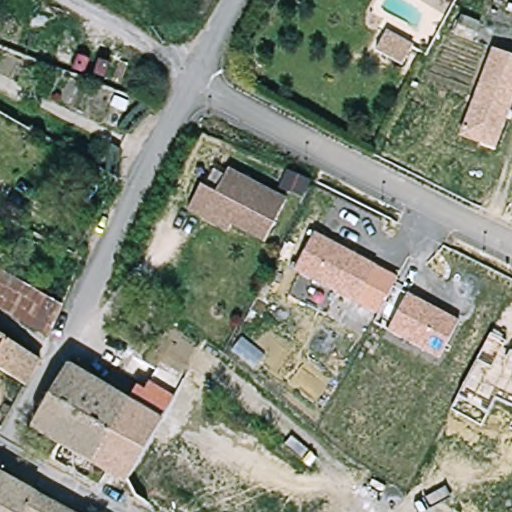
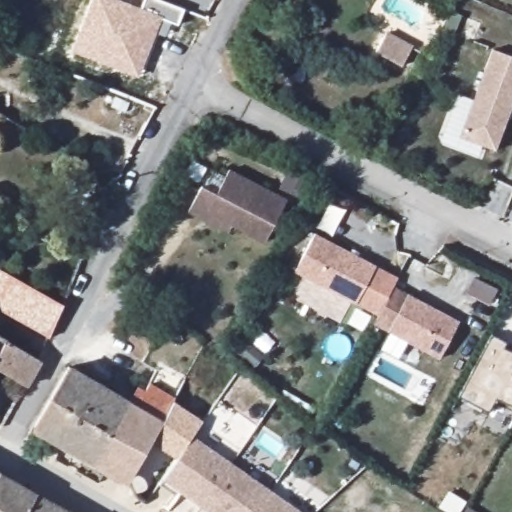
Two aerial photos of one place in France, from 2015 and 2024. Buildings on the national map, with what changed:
new [(70,50),(91,0),(120,0),(140,8),(143,0),(165,0),(183,7),(177,23),(162,17),(138,77),(70,50)]
unchanged [(411,46),(398,68),(373,55),(386,34),(411,46)]
unchanged [(512,102),(494,150),(460,136),(492,51),(512,58),(512,102)]
unchanged [(206,220),(191,212),(203,187),(218,195),(231,171),(290,201),(267,243),(235,227),(231,233),(206,220)]
unchanged [(395,278),(375,313),(295,271),(315,235),(395,278)]
unchanged [(48,336),(0,307),(0,272),(60,308),(48,336)]
unchanged [(457,322),(438,355),(391,329),(408,295),(457,322)]
new [(486,412),(458,397),(491,333),(506,341),(503,348),(512,352),(512,406),(495,397),(486,412)]
unchanged [(3,336),(0,341),(0,334),(3,336)]
unchanged [(0,371),(0,341),(3,336),(37,358),(22,383),(0,371)]
unchanged [(35,430),(68,371),(125,404),(132,408),(100,465),(35,430)]
unchanged [(130,487),(125,478),(105,468),(100,465),(132,408),(165,426),(130,487)]
demolished [(141,500),(139,499),(135,496),(132,492),(130,487),(165,426),(272,505),(267,512),(158,512),(141,500)]
new [(303,512),(209,512),(162,479),(192,436),(303,512)]
unchanged [(65,512),(0,512),(0,477),(65,512)]

